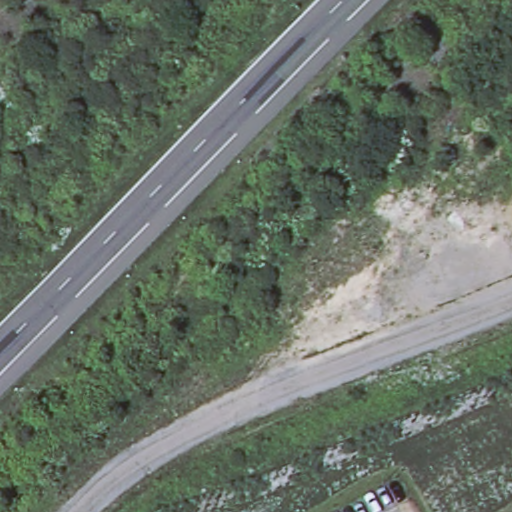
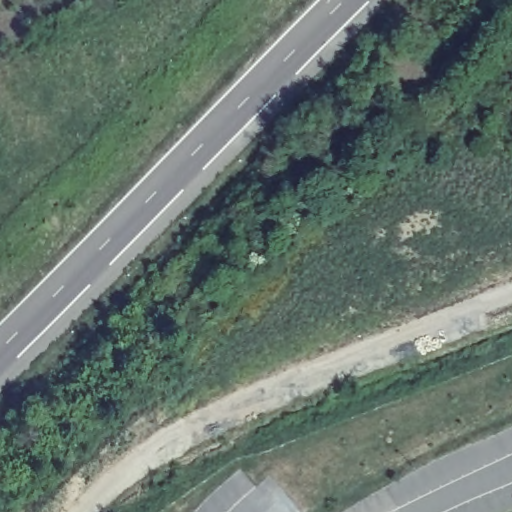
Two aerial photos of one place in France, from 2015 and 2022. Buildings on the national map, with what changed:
unchanged [(447,38),(462,50),(442,67),(431,60),(447,38)]

